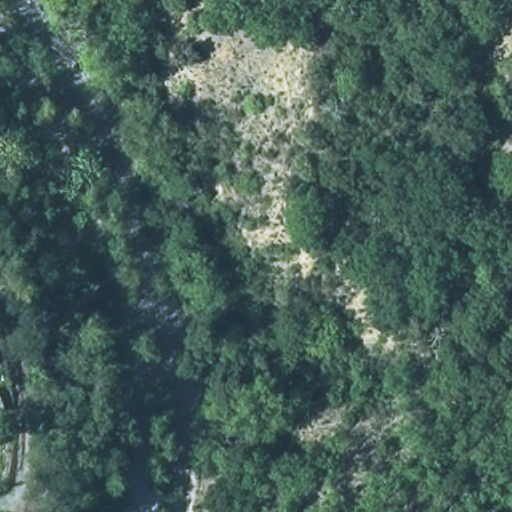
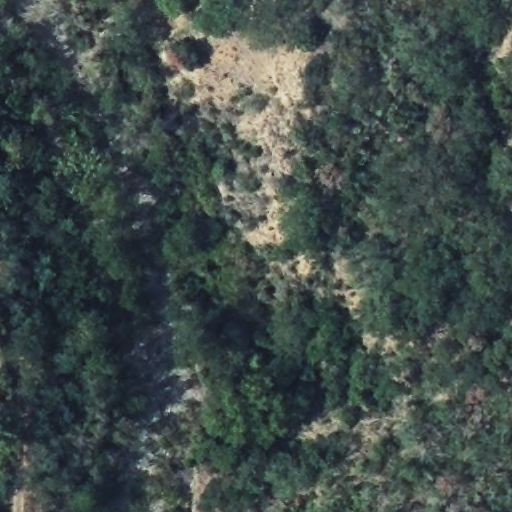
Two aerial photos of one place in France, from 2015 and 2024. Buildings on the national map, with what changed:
unchanged [(0,413),(0,400),(3,412),(0,413)]

